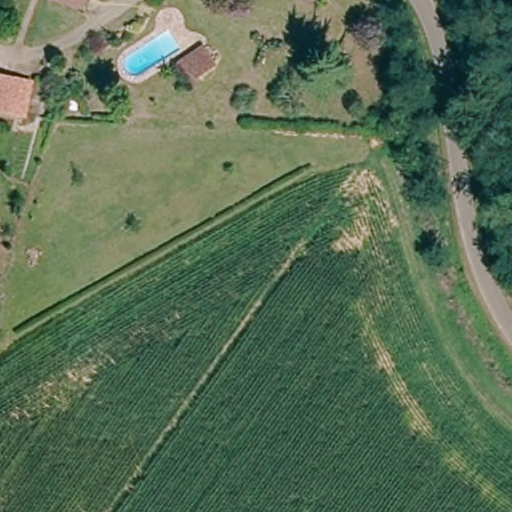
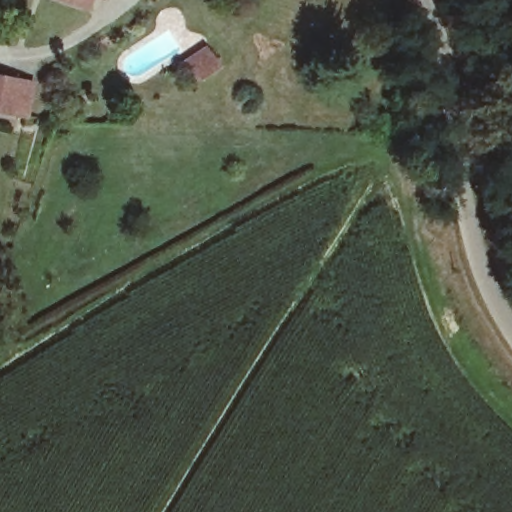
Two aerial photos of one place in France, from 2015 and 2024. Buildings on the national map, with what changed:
unchanged [(70,0),(98,0),(95,8),(70,0)]
unchanged [(205,73),(188,61),(210,44),(222,60),(205,73)]
unchanged [(18,122),(7,118),(0,116),(0,72),(19,79),(29,83),(18,122)]

